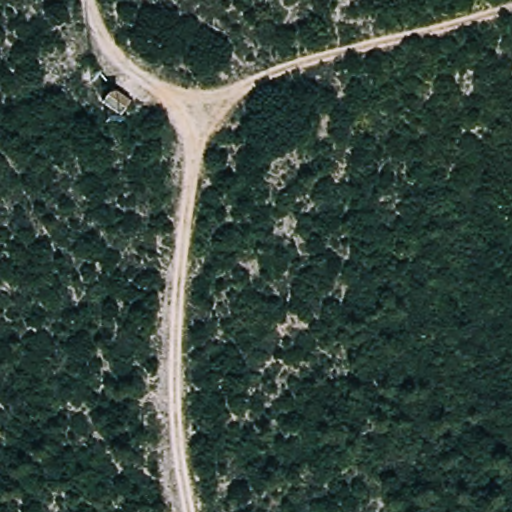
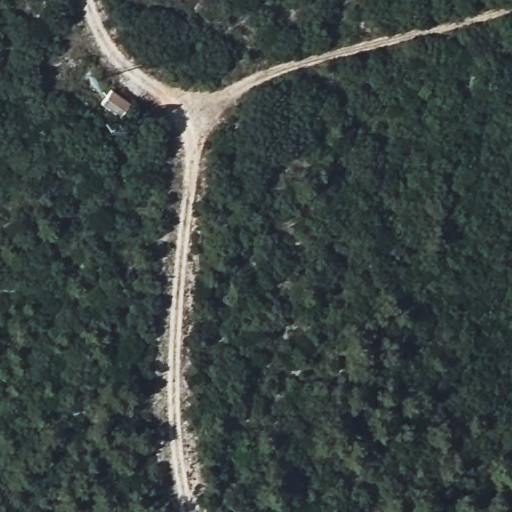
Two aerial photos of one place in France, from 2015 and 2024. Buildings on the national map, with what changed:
unchanged [(108,95),(134,111),(125,123),(98,106),(108,95)]

